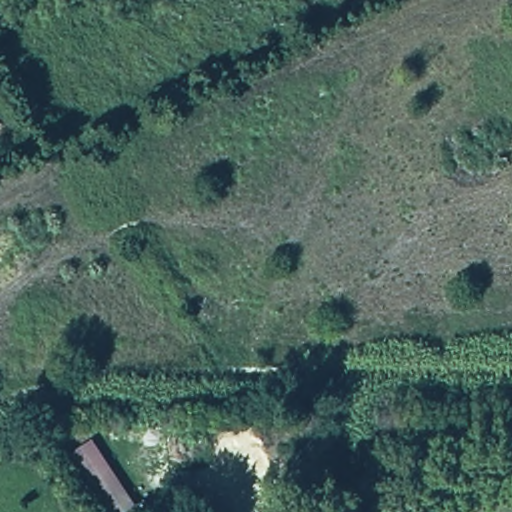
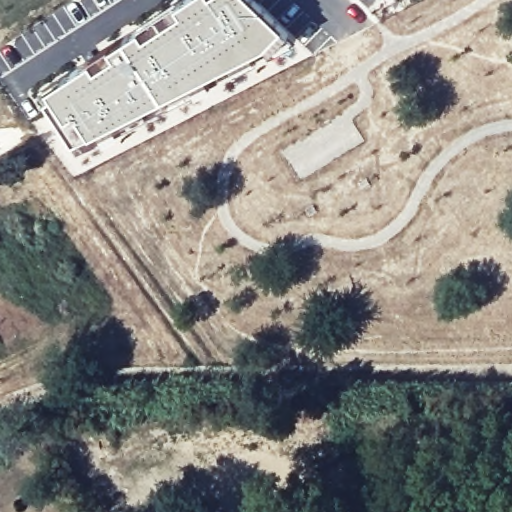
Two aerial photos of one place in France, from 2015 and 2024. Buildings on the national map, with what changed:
new [(213,86),(73,152),(33,91),(169,0),(258,0),(299,39),(213,86)]
unchanged [(134,510),(131,512),(104,512),(66,456),(89,439),(134,510)]

